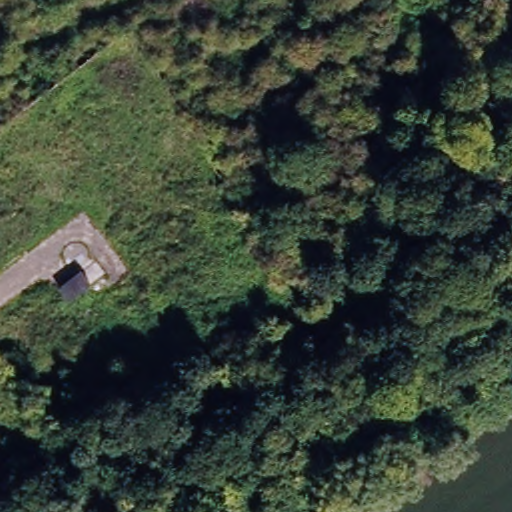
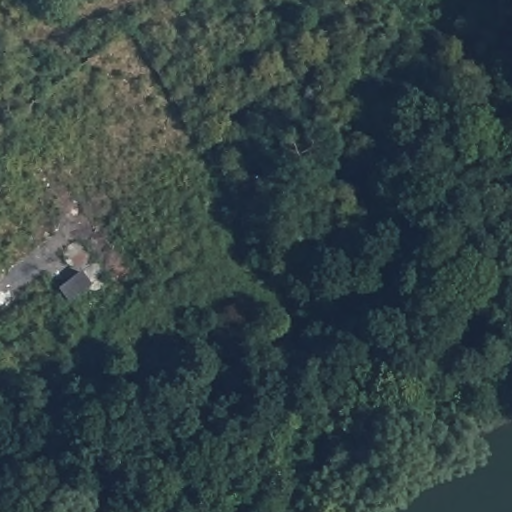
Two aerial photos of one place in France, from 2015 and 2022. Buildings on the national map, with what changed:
unchanged [(96,262),(106,276),(69,303),(61,292),(96,262)]

